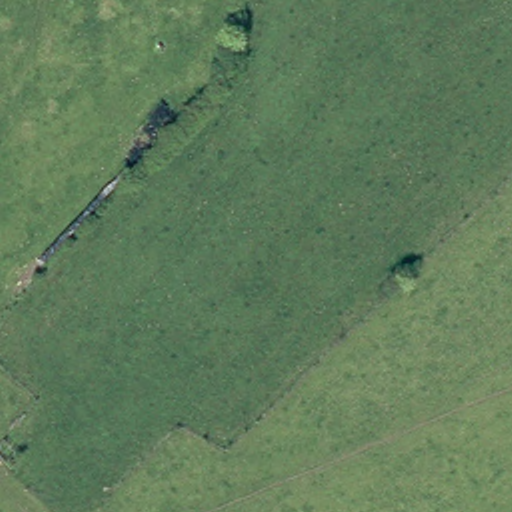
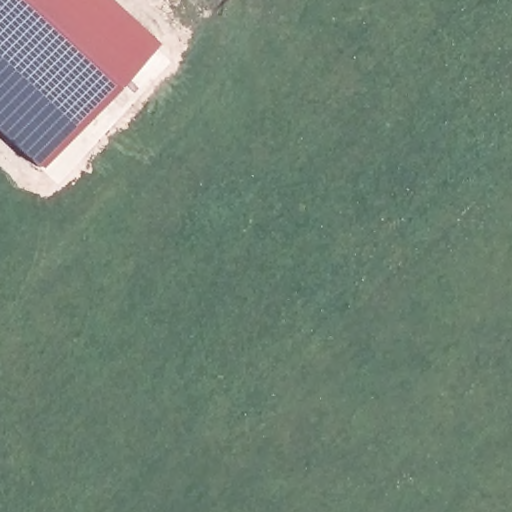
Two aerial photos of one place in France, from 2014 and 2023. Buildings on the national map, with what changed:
new [(115,75),(30,169),(0,142),(0,0),(32,0),(115,75)]
new [(142,45),(115,75),(32,0),(92,0),(142,45)]

